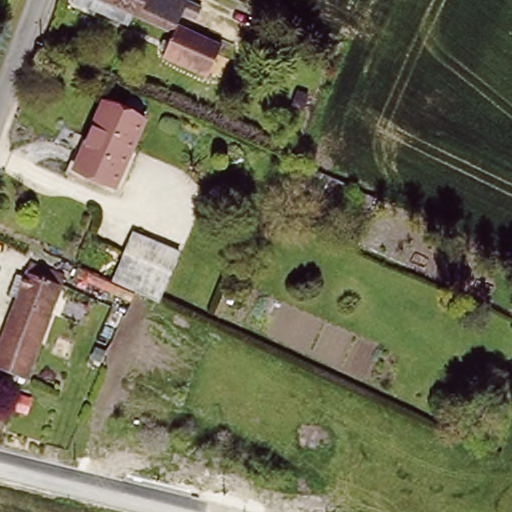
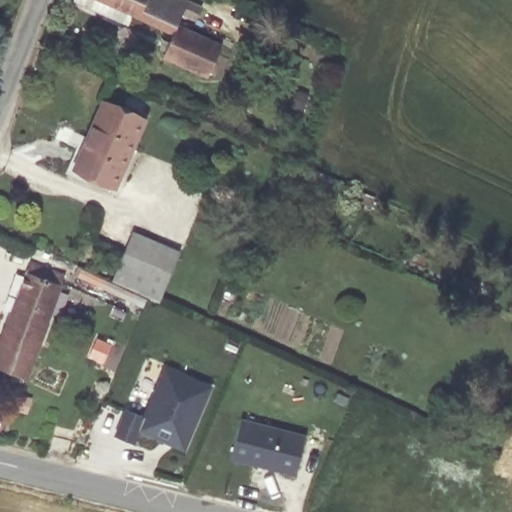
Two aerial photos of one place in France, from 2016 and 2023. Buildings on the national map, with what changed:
unchanged [(133,24),(81,0),(126,0),(140,6),(133,24)]
unchanged [(190,6),(184,19),(182,24),(140,6),(126,0),(208,0),(203,11),(190,6)]
unchanged [(227,39),(214,71),(170,50),(182,24),(184,19),(227,39)]
unchanged [(113,185),(72,170),(100,104),(138,118),(113,185)]
unchanged [(113,275),(134,231),(182,252),(162,296),(113,275)]
new [(77,278),(75,285),(66,281),(68,274),(65,273),(69,262),(112,281),(113,275),(162,296),(158,304),(148,299),(142,308),(77,278)]
unchanged [(0,345),(13,309),(0,305),(7,282),(22,285),(27,270),(63,283),(27,386),(0,375),(0,345)]
new [(185,452),(140,432),(135,445),(113,436),(123,410),(145,417),(163,366),(212,386),(185,452)]
new [(296,477),(230,460),(241,418),(307,435),(296,477)]

